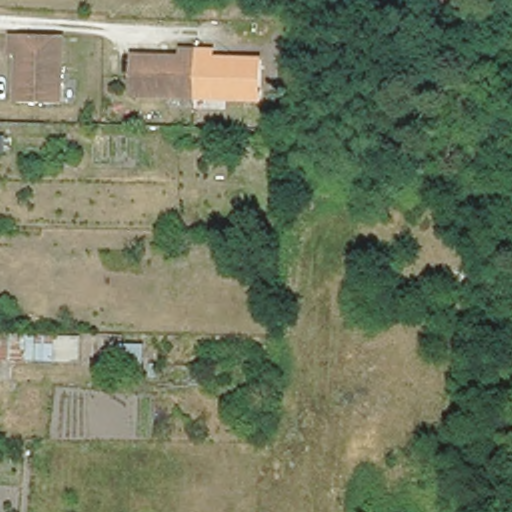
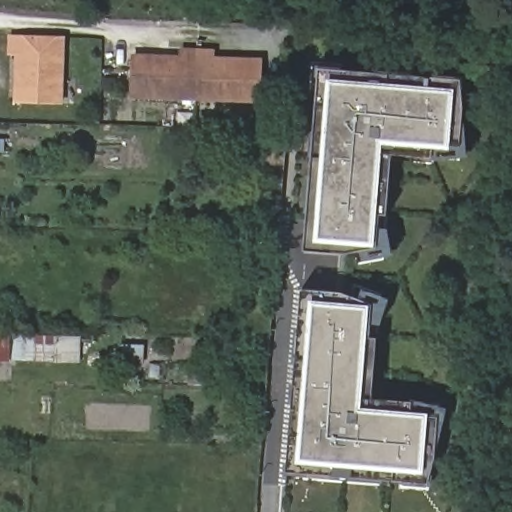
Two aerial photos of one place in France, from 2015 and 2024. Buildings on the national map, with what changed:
unchanged [(10,30),(62,34),(57,101),(14,98),(17,50),(9,50),(10,30)]
unchanged [(186,55),(186,48),(202,48),(200,95),(136,93),(137,53),(186,55)]
unchanged [(217,49),(217,56),(265,57),(264,97),(200,95),(202,48),(217,49)]
new [(450,145),(449,149),(433,148),(432,157),(393,154),(387,214),(378,214),(375,246),(345,254),(305,250),(319,67),(461,79),(463,104),(463,128),(461,146),(450,145)]
new [(342,293),(371,306),(368,337),(377,338),(372,396),(412,401),(412,410),(428,412),(428,414),(439,416),(436,452),(428,483),(287,471),(301,290),(342,293)]
unchanged [(0,364),(0,333),(72,335),(71,367),(0,364)]

